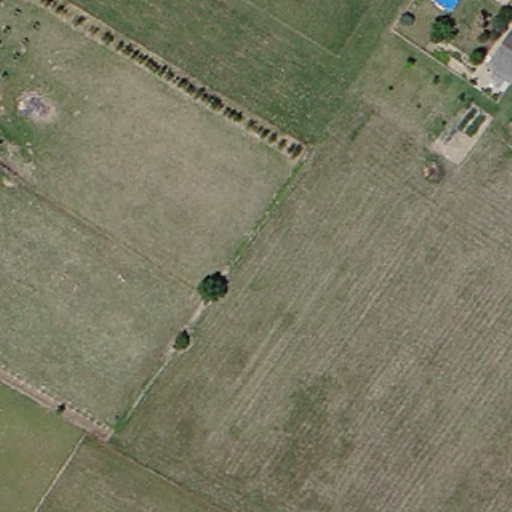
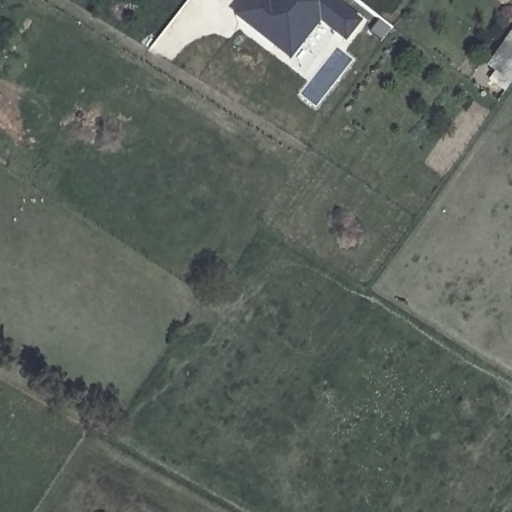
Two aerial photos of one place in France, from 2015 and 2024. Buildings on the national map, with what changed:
new [(243,0),(334,0),(361,22),(345,44),(318,24),(302,46),(311,53),(297,69),(230,16),(243,0)]
unchanged [(503,32),(512,38),(512,72),(504,83),(480,65),(503,32)]

